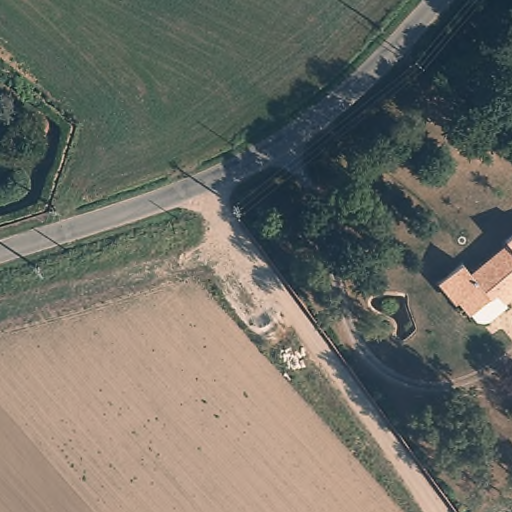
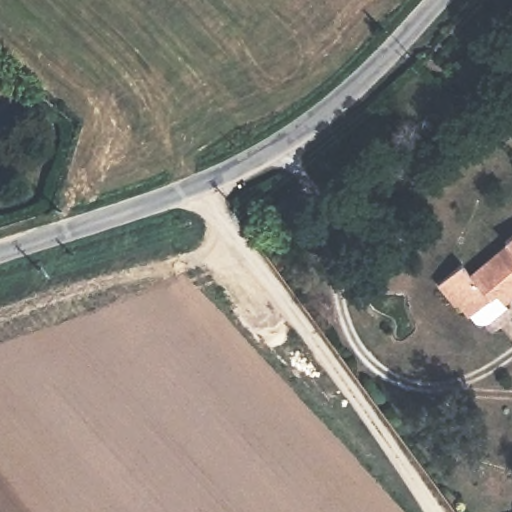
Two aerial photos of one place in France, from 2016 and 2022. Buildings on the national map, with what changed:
unchanged [(495,320),(480,321),(471,311),(463,301),(457,305),(439,280),(464,262),(474,274),(510,247),(506,240),(512,236),(512,296),(505,302),(506,311),(495,320)]

